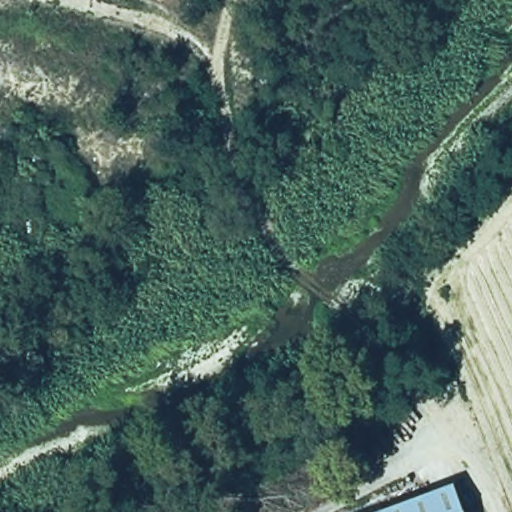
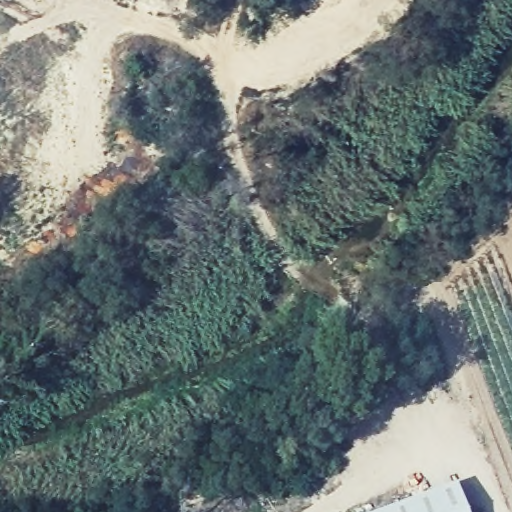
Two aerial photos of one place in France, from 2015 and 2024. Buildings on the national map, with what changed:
unchanged [(462,512),(386,512),(452,487),(462,512)]

